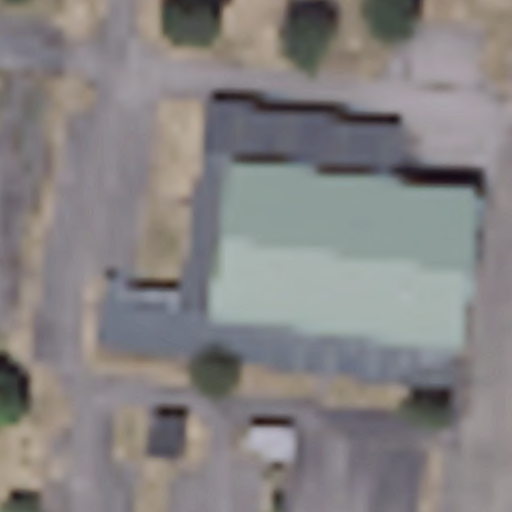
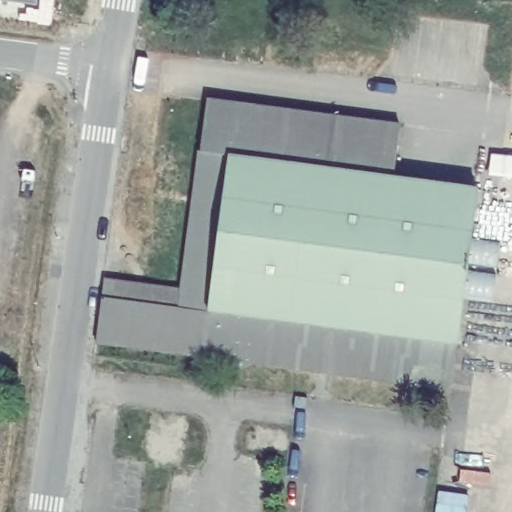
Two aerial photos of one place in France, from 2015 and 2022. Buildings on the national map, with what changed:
unchanged [(391,172),(477,188),(459,345),(453,388),(99,346),(104,276),(211,285),(226,156),(198,151),(210,98),(399,126),(391,172)]
unchanged [(146,454),(153,410),(188,413),(183,458),(146,454)]
unchanged [(249,423),(294,429),(289,455),(243,447),(249,423)]

